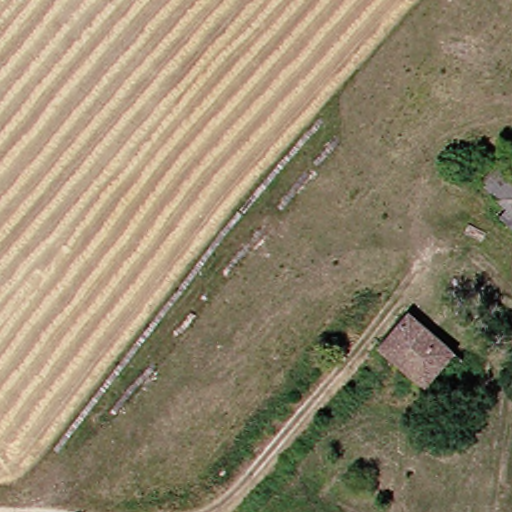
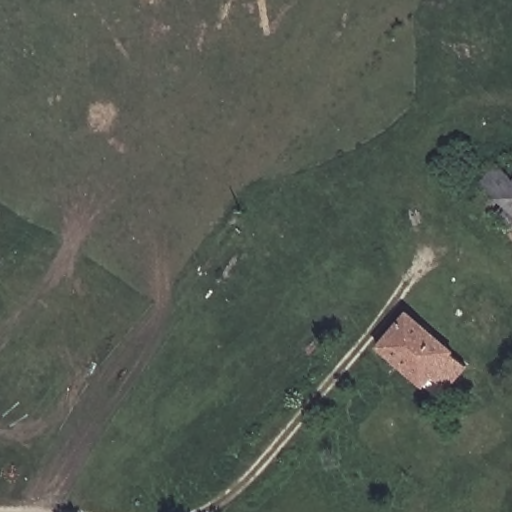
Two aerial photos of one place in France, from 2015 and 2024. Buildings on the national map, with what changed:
unchanged [(480,219),(491,207),(467,186),(489,161),(510,176),(512,174),(512,215),(495,232),(480,219)]
unchanged [(397,311),(445,359),(416,391),(367,347),(397,311)]

